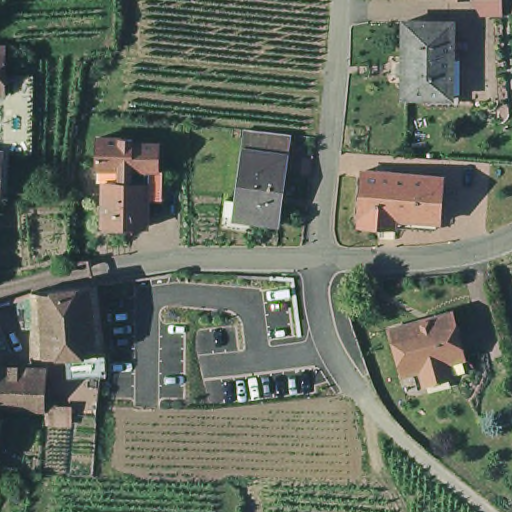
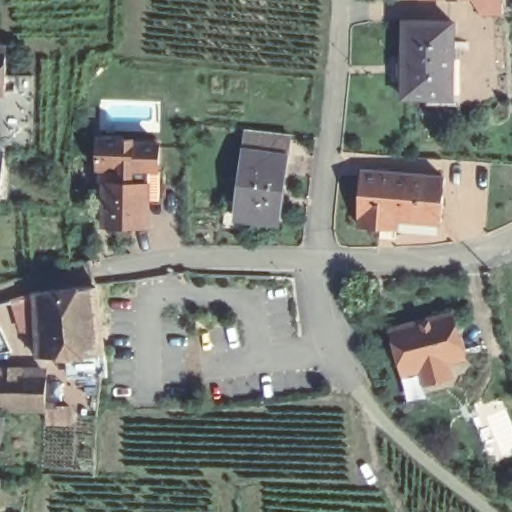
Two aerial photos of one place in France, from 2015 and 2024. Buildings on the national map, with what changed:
unchanged [(453,15),(451,90),(403,89),(404,14),(453,15)]
unchanged [(3,43),(3,45),(8,45),(7,71),(7,86),(4,86),(0,86),(0,43),(3,43)]
unchanged [(4,107),(4,86),(7,86),(7,71),(34,72),(34,107),(34,126),(34,148),(6,147),(4,192),(0,192),(0,145),(3,146),(4,126),(4,107)]
unchanged [(100,173),(100,159),(99,159),(100,129),(136,130),(135,135),(162,136),(161,160),(161,161),(149,161),(149,174),(123,174),(106,173),(100,173)]
unchanged [(248,229),(233,227),(236,212),(241,163),(244,140),(286,145),(284,167),(274,233),(248,229)]
unchanged [(444,164),(441,210),(398,207),(398,216),(361,214),(361,204),(359,204),(362,159),(444,164)]
unchanged [(149,191),(149,218),(104,216),(106,173),(123,174),(149,174),(149,191)]
unchanged [(72,350),(34,352),(33,324),(19,325),(12,294),(30,288),(94,281),(103,349),(104,372),(98,373),(73,374),(72,350)]
unchanged [(452,304),(464,347),(448,352),(451,366),(436,371),(422,313),(452,304)]
unchanged [(436,371),(426,373),(422,359),(404,364),(392,322),(422,313),(436,371)]
unchanged [(43,418),(44,405),(42,405),(42,408),(0,407),(0,367),(43,368),(43,397),(54,398),(54,403),(69,404),(68,419),(43,418)]
unchanged [(3,411),(0,427),(0,410),(3,411)]

